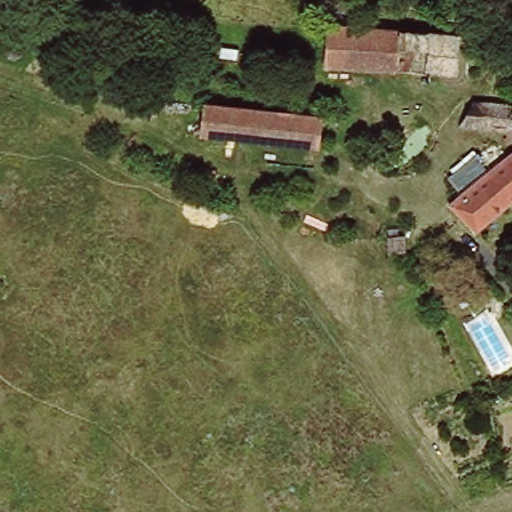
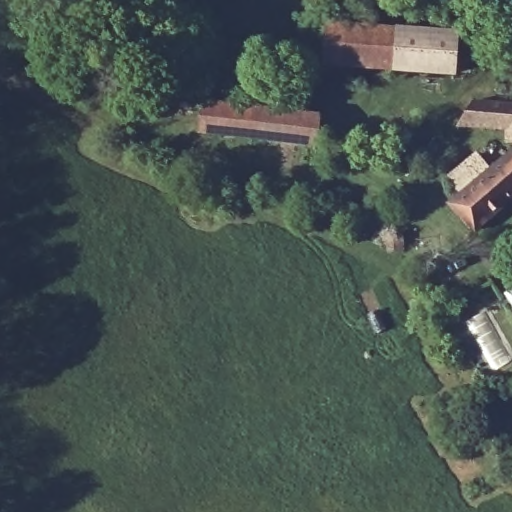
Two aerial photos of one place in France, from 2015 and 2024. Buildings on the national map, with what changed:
unchanged [(444,69),(333,57),(336,28),(447,40),(444,69)]
unchanged [(476,97),(512,104),(512,138),(508,137),(507,126),(462,120),(476,97)]
unchanged [(316,150),(197,135),(202,101),(320,114),(316,150)]
unchanged [(470,175),(510,152),(512,152),(512,204),(475,229),(458,204),(452,188),(468,180),(470,175)]

